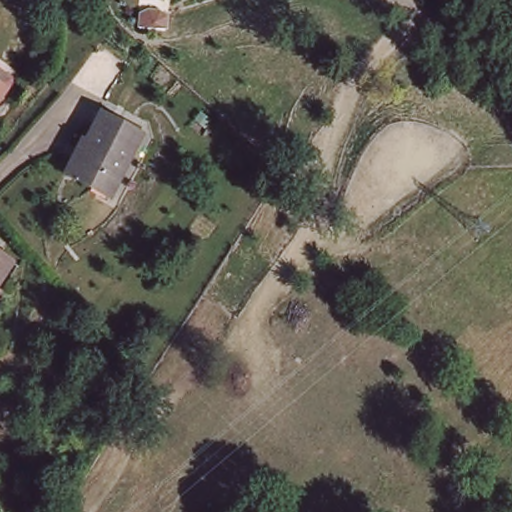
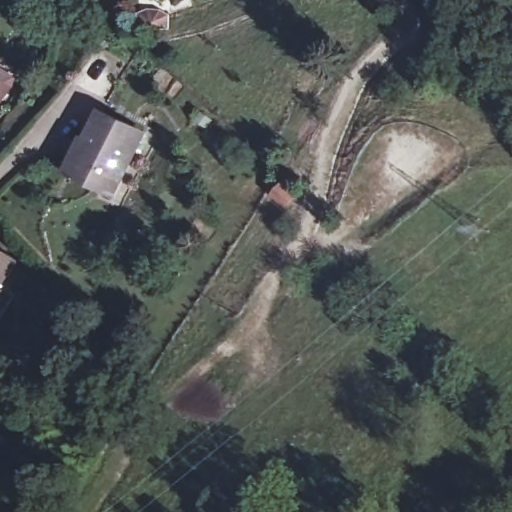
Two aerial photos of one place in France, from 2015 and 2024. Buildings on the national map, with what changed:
unchanged [(0,85),(7,90),(0,99),(0,85)]
unchanged [(80,137),(85,140),(101,110),(144,130),(110,193),(76,174),(65,167),(80,137)]

